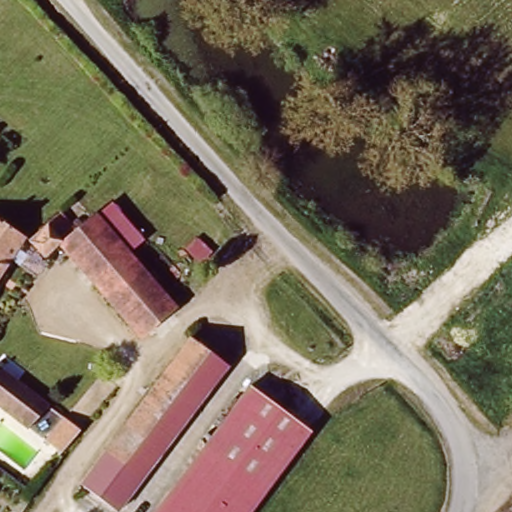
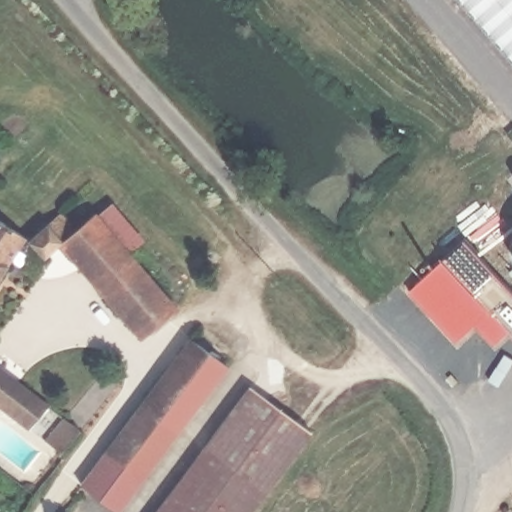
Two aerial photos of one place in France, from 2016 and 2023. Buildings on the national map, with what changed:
new [(512,59),(461,0),(512,0),(512,59)]
unchanged [(42,255),(28,239),(60,212),(74,228),(95,211),(175,308),(137,340),(57,243),(42,255)]
unchanged [(0,275),(0,220),(25,237),(0,275)]
new [(495,345),(477,325),(457,343),(412,291),(467,239),(512,289),(512,334),(510,332),(495,345)]
unchanged [(142,482),(105,453),(192,340),(228,368),(142,482)]
unchanged [(0,411),(0,362),(50,403),(30,434),(0,411)]
unchanged [(249,512),(155,512),(255,392),(310,437),(249,512)]
unchanged [(82,436),(63,459),(46,445),(65,422),(82,436)]
unchanged [(119,512),(116,512),(81,485),(105,453),(142,482),(119,512)]

